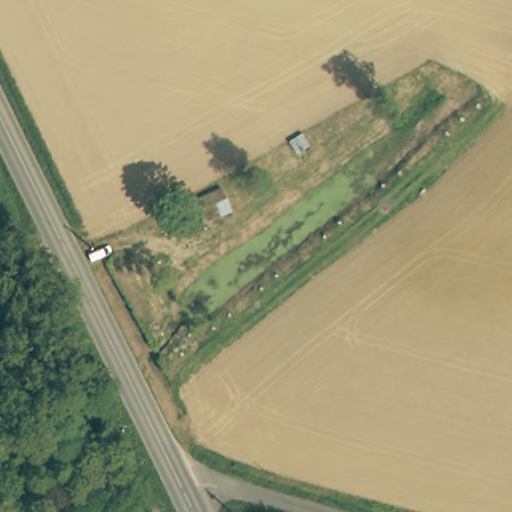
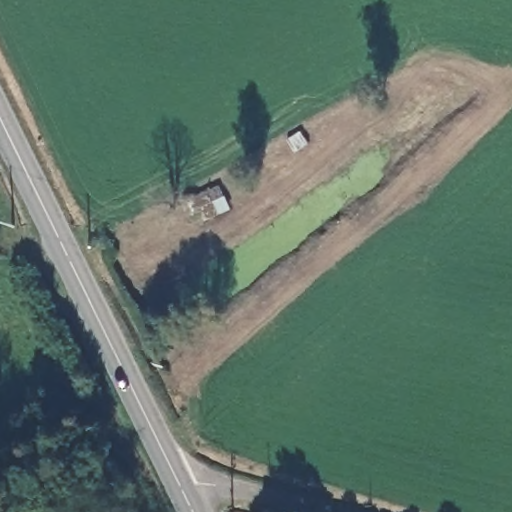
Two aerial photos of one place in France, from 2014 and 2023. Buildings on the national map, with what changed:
unchanged [(214,192),(222,209),(187,226),(180,209),(214,192)]

